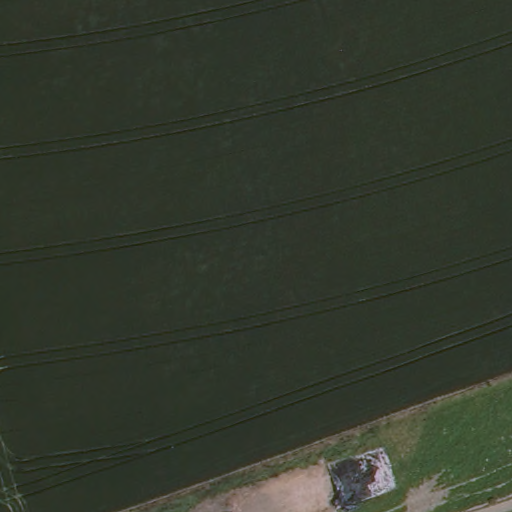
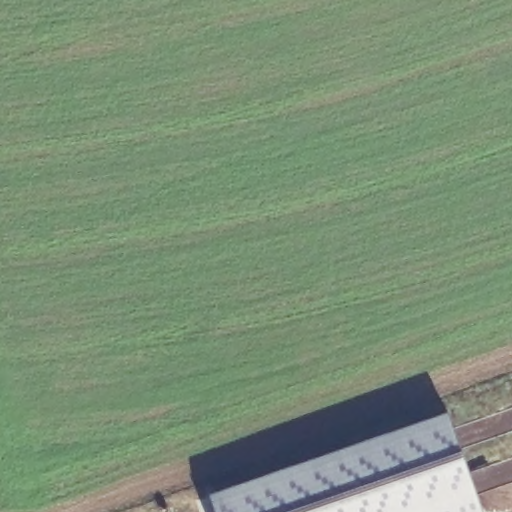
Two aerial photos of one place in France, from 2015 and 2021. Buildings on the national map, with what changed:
new [(210,494),(449,413),(484,512),(217,512),(210,494)]

